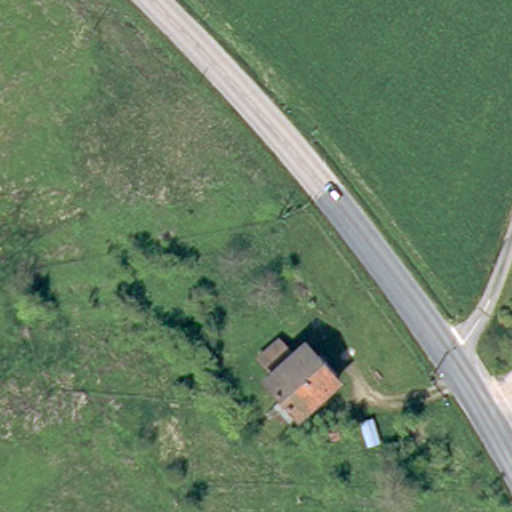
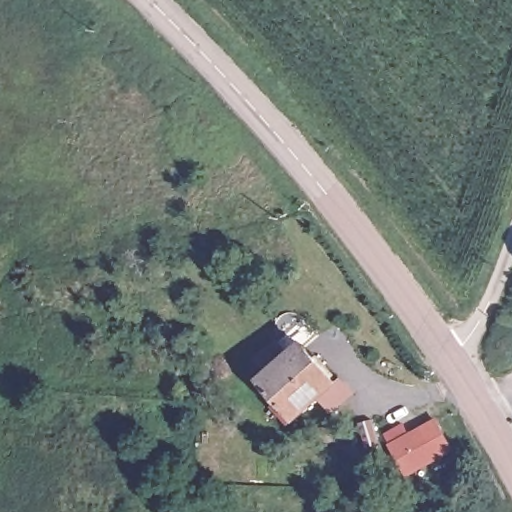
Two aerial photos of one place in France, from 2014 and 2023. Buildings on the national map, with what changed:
unchanged [(290,355),(306,344),(340,380),(294,421),(290,417),(282,424),(267,407),(273,402),(257,386),(270,375),(257,361),(279,343),(290,355)]
new [(455,450),(405,476),(387,443),(437,417),(455,450)]

